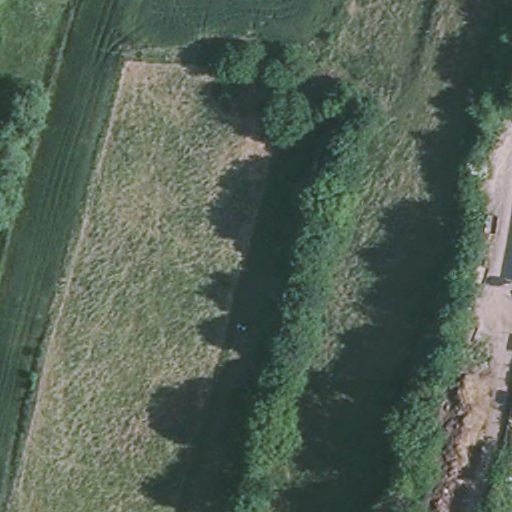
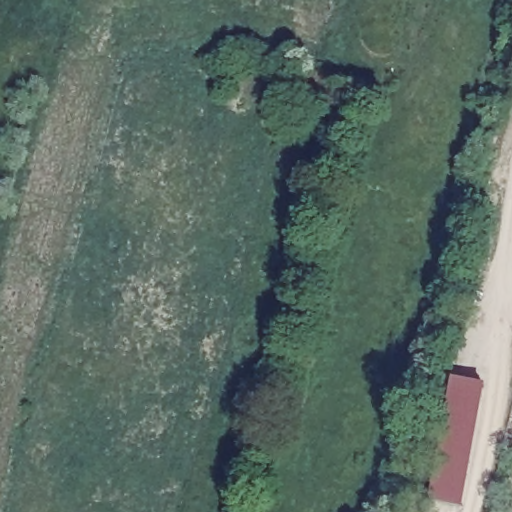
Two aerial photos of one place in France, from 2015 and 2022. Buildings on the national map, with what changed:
new [(482,381),(460,505),(428,498),(448,375),(482,381)]

